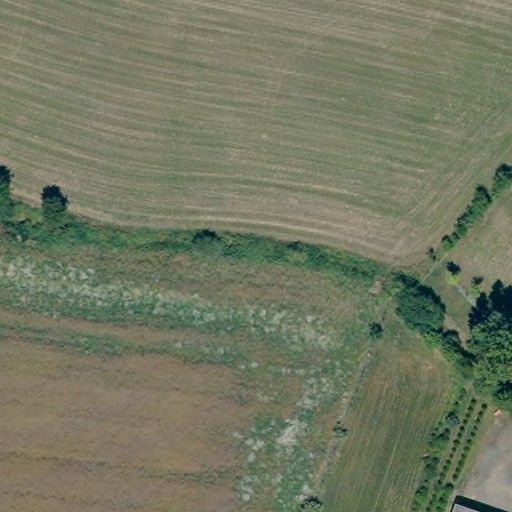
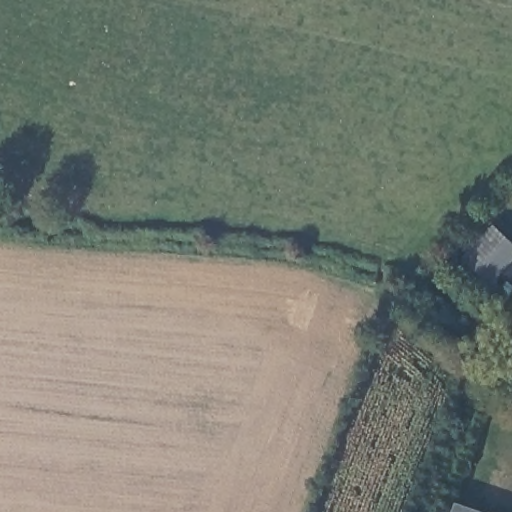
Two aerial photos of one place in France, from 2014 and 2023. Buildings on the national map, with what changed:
new [(491,285),(462,260),(494,226),(512,243),(512,262),(491,285)]
unchanged [(477,512),(454,512),(456,505),(477,512)]

